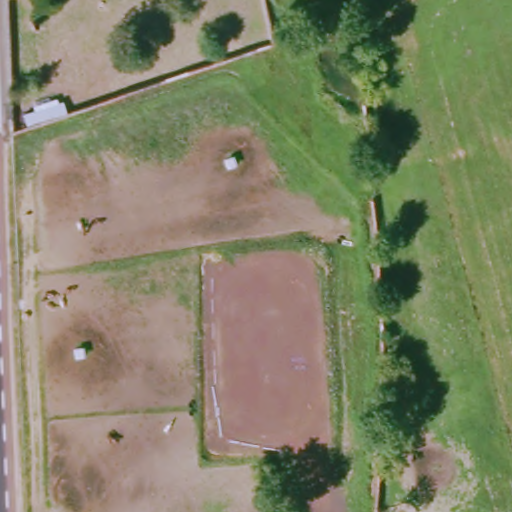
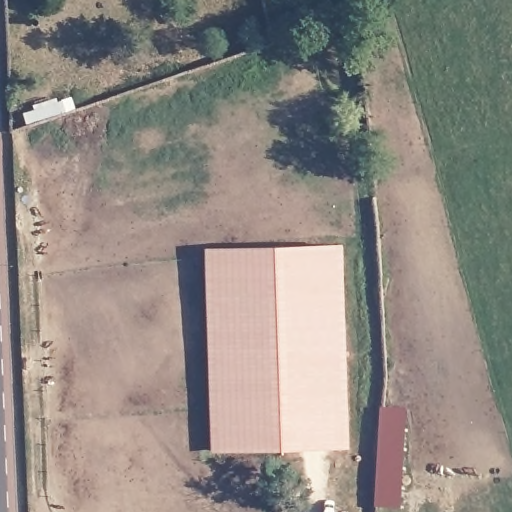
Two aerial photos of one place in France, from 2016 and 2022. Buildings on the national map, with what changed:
unchanged [(0,0),(4,0),(0,1),(0,0)]
unchanged [(20,130),(15,114),(58,98),(65,113),(20,130)]
new [(210,452),(204,248),(341,244),(347,447),(210,452)]

